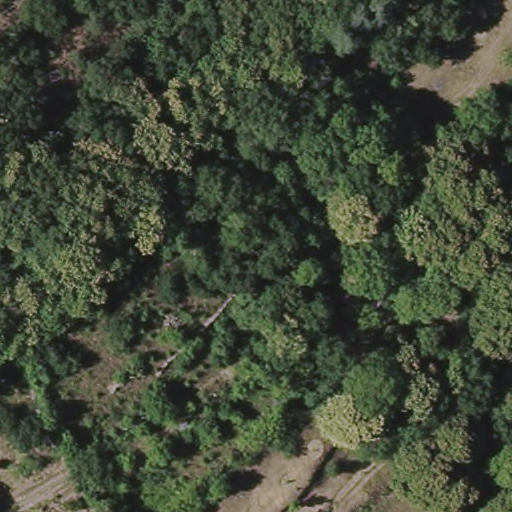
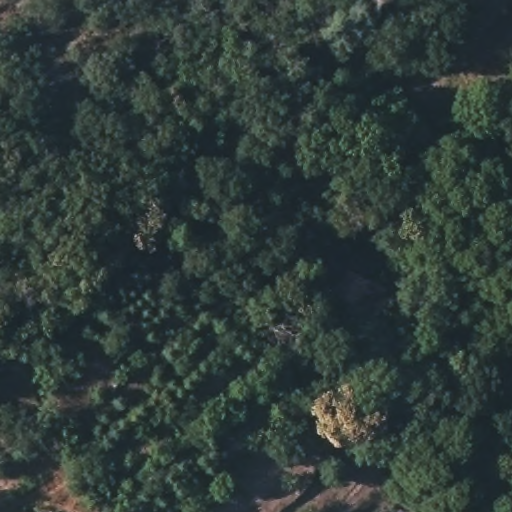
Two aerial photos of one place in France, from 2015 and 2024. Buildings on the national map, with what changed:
unchanged [(318,207),(304,223),(289,208),(304,193),(318,207)]
unchanged [(361,305),(336,290),(350,267),(387,287),(376,313),(361,305)]

